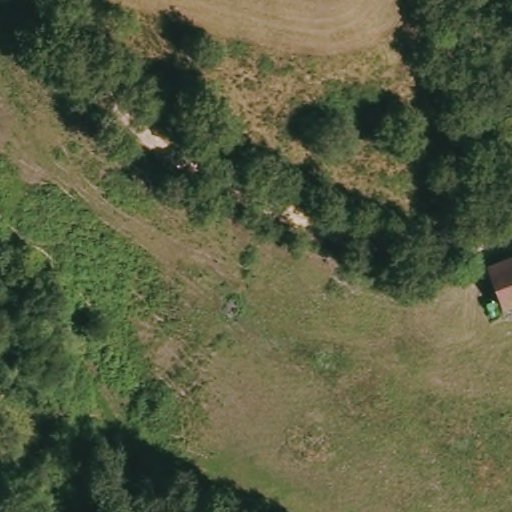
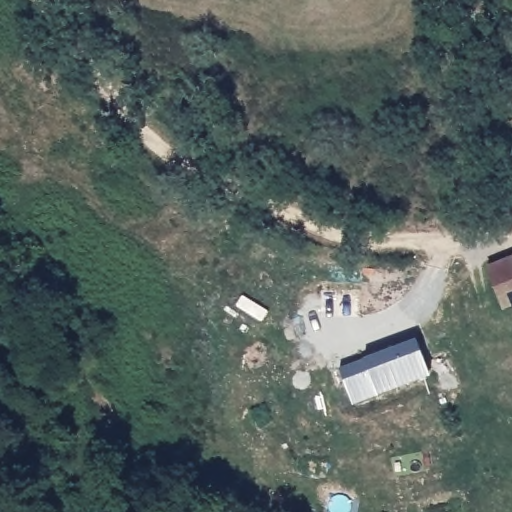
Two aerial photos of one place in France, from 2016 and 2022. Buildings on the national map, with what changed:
unchanged [(487,263),(512,253),(512,305),(504,308),(487,263)]
new [(417,341),(430,375),(378,395),(355,404),(342,369),(367,359),(417,341)]

